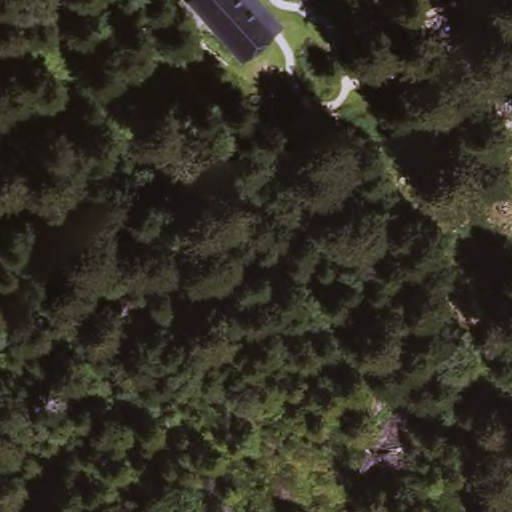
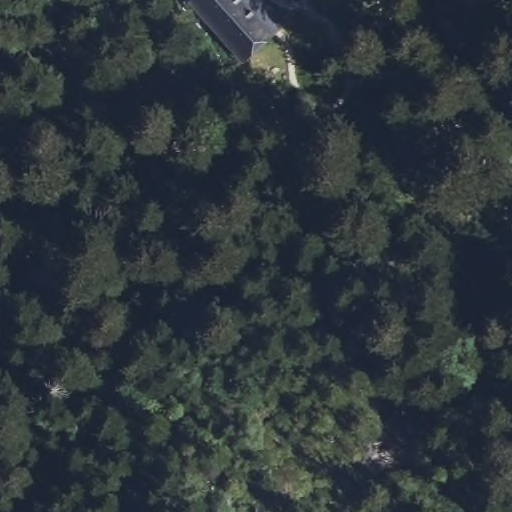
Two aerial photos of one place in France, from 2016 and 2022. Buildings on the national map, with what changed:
unchanged [(288,13),(256,44),(217,0),(276,0),(288,13)]

